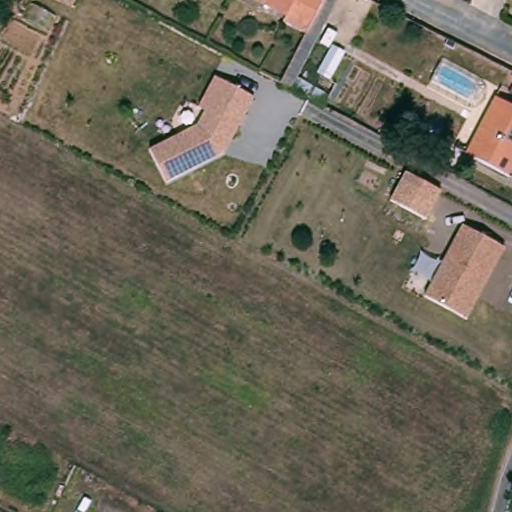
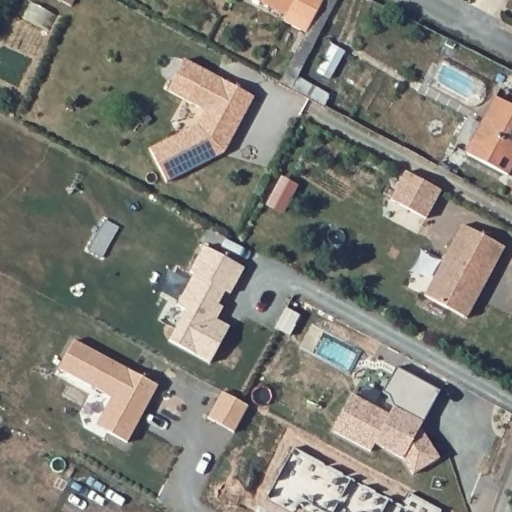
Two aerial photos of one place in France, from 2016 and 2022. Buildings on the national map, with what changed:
unchanged [(275,12),(276,7),(262,0),(309,0),(296,24),(275,12)]
unchanged [(309,0),(323,0),(308,29),(281,78),(271,72),(275,65),(296,24),(309,0)]
unchanged [(257,96),(227,155),(165,181),(149,147),(193,126),(201,107),(197,104),(215,72),(257,96)]
unchanged [(495,92),(512,102),(512,158),(503,172),(461,147),(495,92)]
unchanged [(441,191),(426,221),(388,200),(404,170),(441,191)]
unchanged [(505,247),(466,320),(422,295),(460,222),(505,247)]
new [(245,267),(230,295),(225,292),(219,305),(224,308),(217,320),(231,327),(211,365),(168,340),(185,310),(176,306),(193,276),(189,273),(203,247),(245,267)]
new [(159,386),(128,442),(96,426),(111,397),(59,370),(75,340),(159,386)]
new [(390,415),(395,407),(389,395),(384,392),(396,368),(439,390),(420,427),(440,460),(413,476),(400,458),(376,445),(371,455),(332,433),(352,395),(390,415)]

